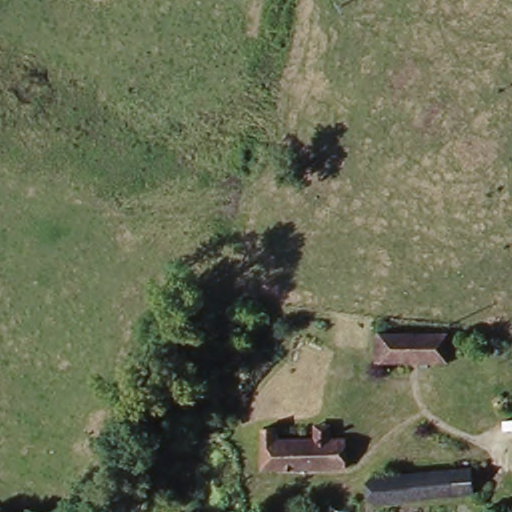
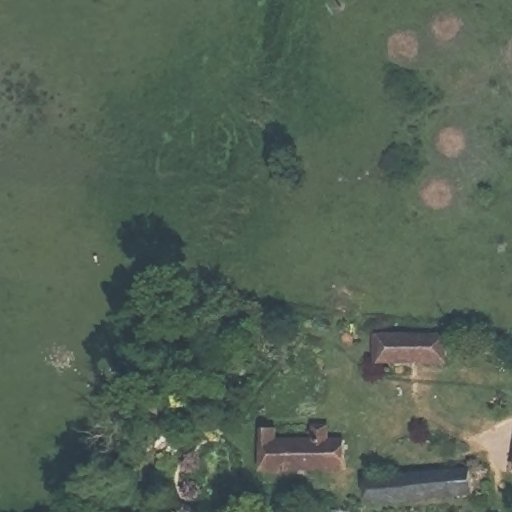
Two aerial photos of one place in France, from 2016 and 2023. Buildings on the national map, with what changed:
unchanged [(448,338),(448,370),(379,370),(380,338),(448,338)]
unchanged [(257,439),(272,439),(273,450),(343,447),(345,477),(260,480),(257,439)]
unchanged [(470,473),(476,496),(389,512),(370,512),(365,492),(470,473)]

